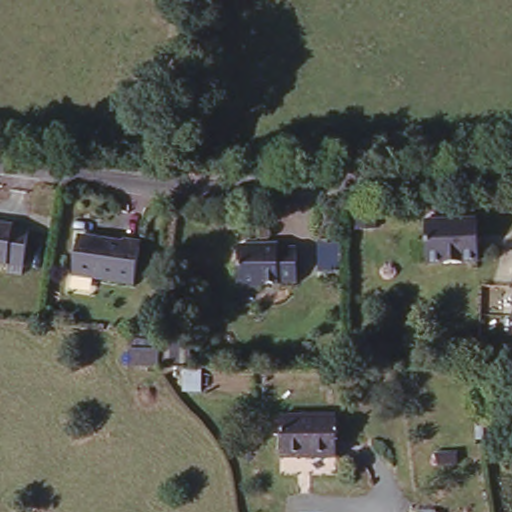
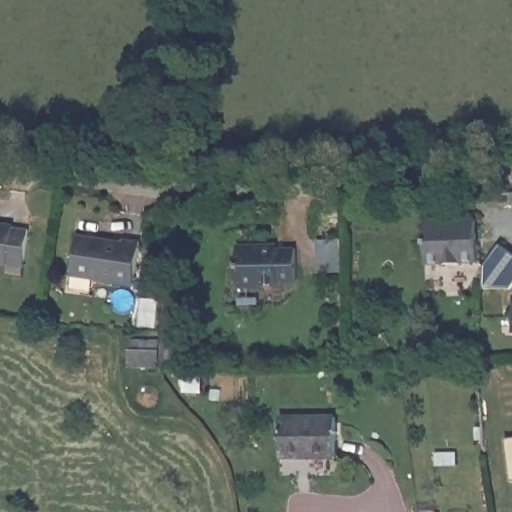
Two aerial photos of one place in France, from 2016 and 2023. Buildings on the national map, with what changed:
unchanged [(385,207),(386,221),(367,223),(366,208),(385,207)]
unchanged [(16,219),(36,220),(34,257),(14,255),(14,257),(0,256),(0,215),(16,216),(16,219)]
unchanged [(476,220),(475,260),(460,260),(460,264),(443,263),(444,260),(427,260),(428,217),(476,220)]
unchanged [(81,272),(83,234),(130,238),(130,235),(147,236),(145,277),(81,272)]
unchanged [(261,244),(261,246),(296,251),(291,287),(256,281),(256,284),(232,281),(237,240),(261,244)]
new [(500,240),(512,248),(512,284),(510,286),(485,286),(486,260),(500,240)]
unchanged [(135,357),(135,340),(136,331),(167,332),(167,340),(166,357),(135,357)]
unchanged [(318,453),(311,457),(291,454),(278,453),(280,410),(330,412),(337,413),(333,453),(332,453),(318,453)]
new [(512,437),(512,481),(510,481),(507,437),(512,437)]

